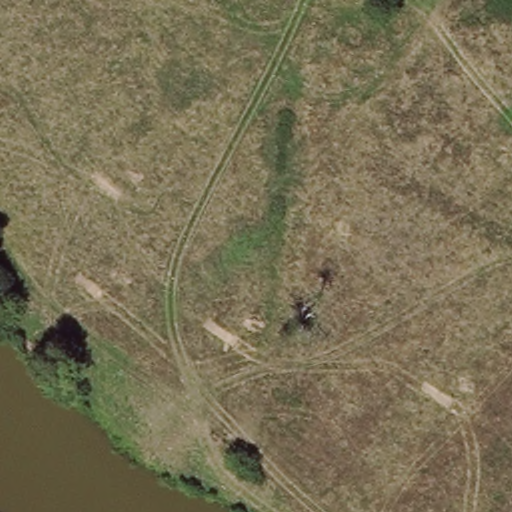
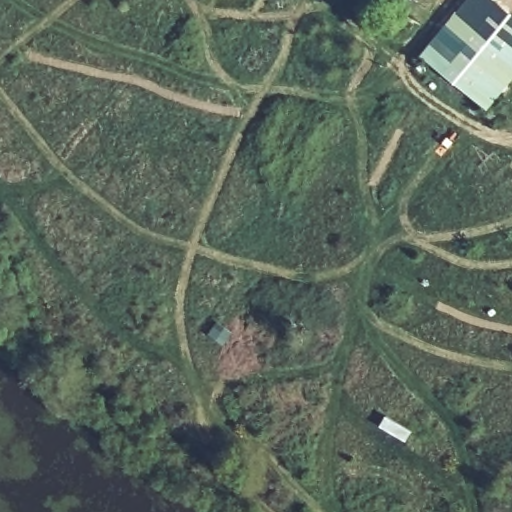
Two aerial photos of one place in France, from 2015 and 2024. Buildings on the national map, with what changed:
new [(488,109),(421,55),(466,0),(495,0),(512,14),(512,80),(488,109)]

